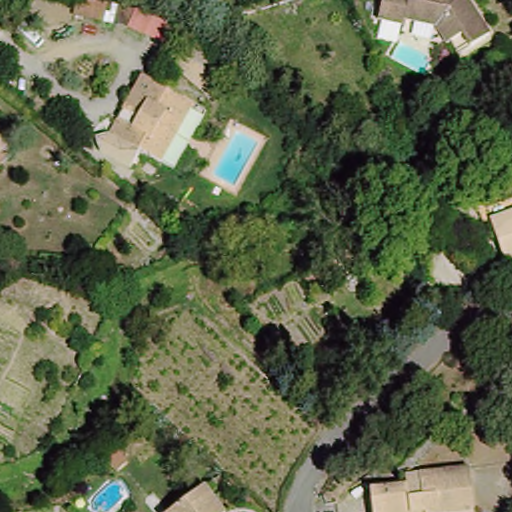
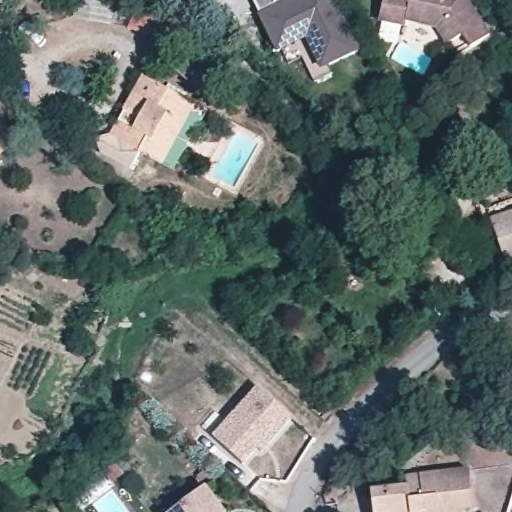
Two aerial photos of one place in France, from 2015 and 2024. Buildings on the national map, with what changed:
unchanged [(89,0),(138,14),(137,31),(79,19),(79,0),(89,0)]
new [(299,0),(330,0),(356,56),(325,70),(319,56),(313,59),(299,30),(270,44),(257,19),(251,4),(249,0),(286,0),(288,5),(299,0)]
unchanged [(440,20),(409,14),(408,20),(381,15),(383,0),(473,0),(489,27),(469,39),(456,46),(449,34),(440,20)]
unchanged [(228,65),(206,94),(175,65),(196,40),(228,65)]
unchanged [(157,160),(136,148),(134,151),(104,133),(132,89),(142,74),(159,85),(193,106),(157,160)]
unchanged [(6,146),(0,152),(0,141),(6,146)]
unchanged [(512,252),(498,256),(485,216),(512,208),(512,252)]
demolished [(472,242),(479,257),(464,262),(458,248),(472,242)]
new [(293,418),(263,452),(258,448),(243,465),(213,436),(257,386),(293,418)]
new [(114,484),(106,476),(115,467),(123,476),(114,484)]
unchanged [(369,488),(405,484),(405,475),(419,474),(469,468),(472,510),(453,512),(372,512),(369,488)]
unchanged [(195,482),(221,506),(227,511),(226,512),(168,512),(195,482)]

